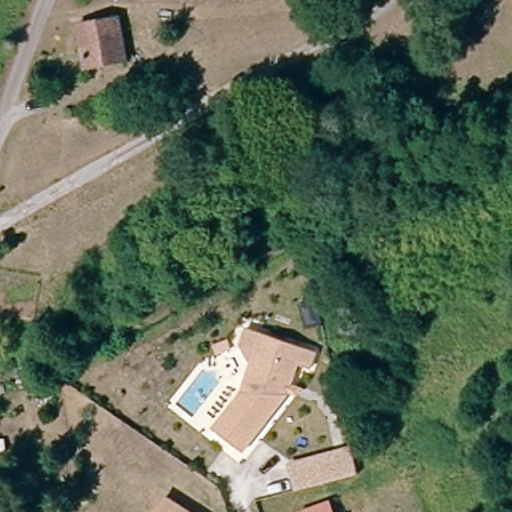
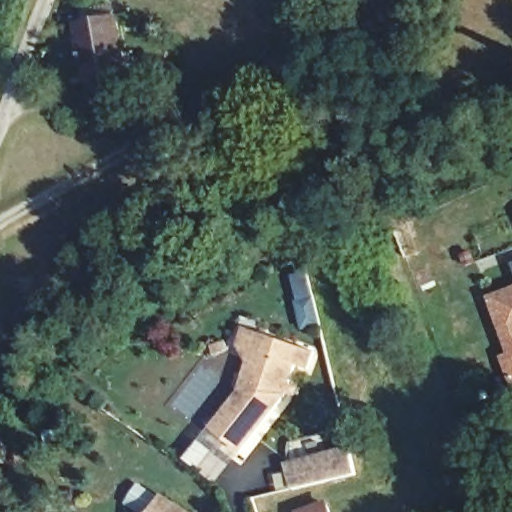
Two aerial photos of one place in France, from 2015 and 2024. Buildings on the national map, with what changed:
unchanged [(84,72),(76,34),(75,26),(115,19),(117,26),(124,65),(84,72)]
unchanged [(38,64),(53,69),(46,84),(30,80),(38,64)]
new [(501,356),(509,353),(489,296),(512,287),(512,385),(501,356)]
unchanged [(315,371),(304,366),(294,393),(248,452),(217,428),(244,392),(257,361),(247,346),(254,328),(268,333),(322,354),(315,371)]
unchanged [(349,445),(357,475),(294,491),(287,463),(349,445)]
unchanged [(191,512),(159,512),(168,497),(191,512)]
unchanged [(324,512),(302,512),(321,505),(324,512)]

